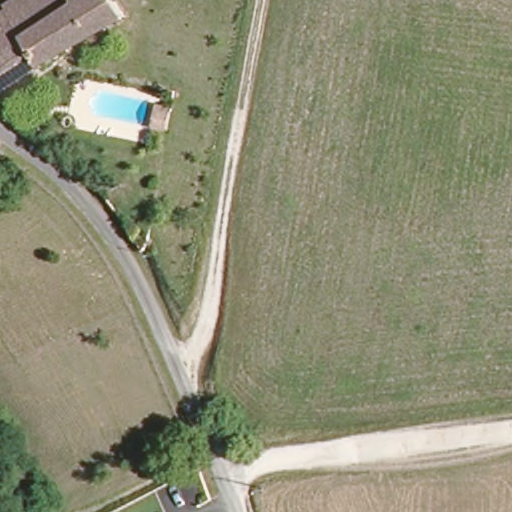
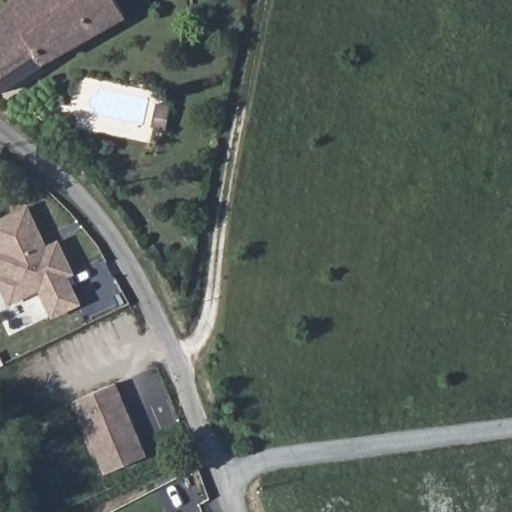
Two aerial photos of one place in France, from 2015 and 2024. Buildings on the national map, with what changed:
unchanged [(12,0),(114,0),(123,14),(47,62),(9,10),(5,5),(12,0)]
unchanged [(47,62),(0,92),(0,17),(9,10),(47,62)]
new [(50,317),(40,292),(8,305),(0,289),(0,279),(3,278),(0,271),(0,259),(3,258),(0,251),(0,220),(28,206),(47,247),(61,240),(76,275),(70,277),(82,304),(50,317)]
new [(147,457),(102,474),(71,401),(116,383),(147,457)]

